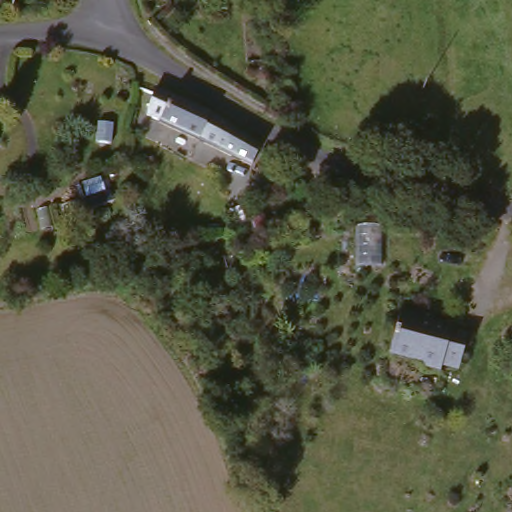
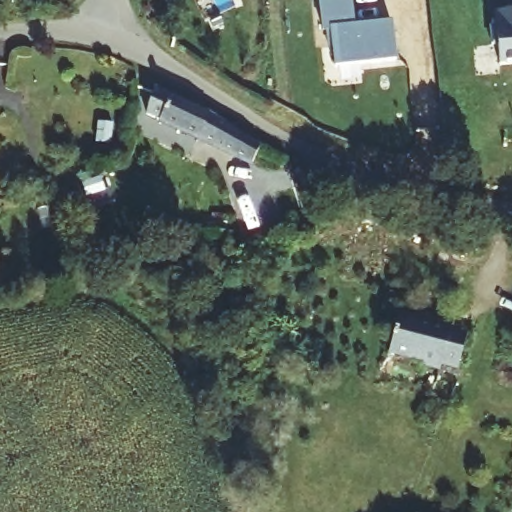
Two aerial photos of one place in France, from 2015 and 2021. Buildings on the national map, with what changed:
new [(338,66),(336,50),(329,50),(327,31),(321,32),(321,20),(320,2),(340,0),(350,0),(351,19),(352,26),(393,24),(395,61),(338,66)]
new [(490,6),(512,5),(512,57),(494,59),(493,39),(487,39),(485,21),(491,21),(490,6)]
unchanged [(254,167),(248,177),(155,132),(165,105),(210,128),(259,159),(254,167)]
unchanged [(437,376),(436,380),(414,373),(415,369),(383,360),(399,312),(431,323),(429,333),(463,345),(453,380),(437,376)]

